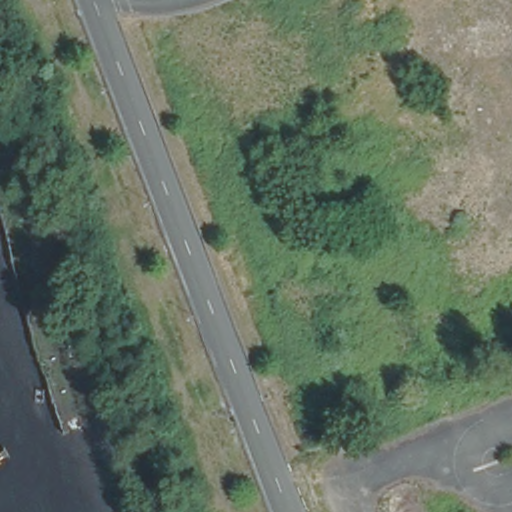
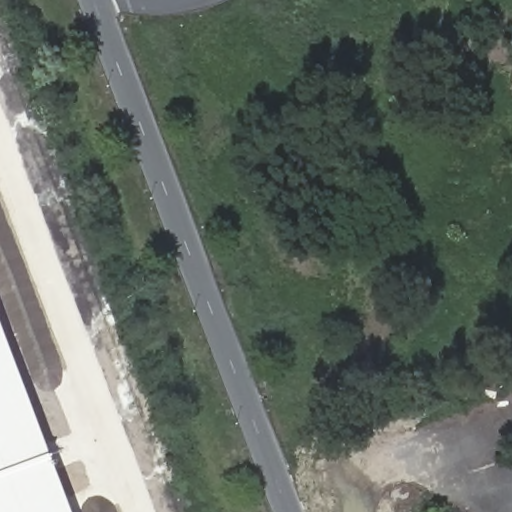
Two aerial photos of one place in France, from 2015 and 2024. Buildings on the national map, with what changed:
new [(50,457),(71,512),(0,512),(0,325),(50,457)]

